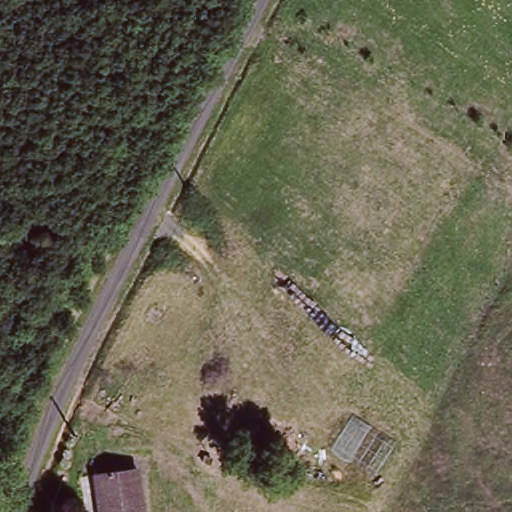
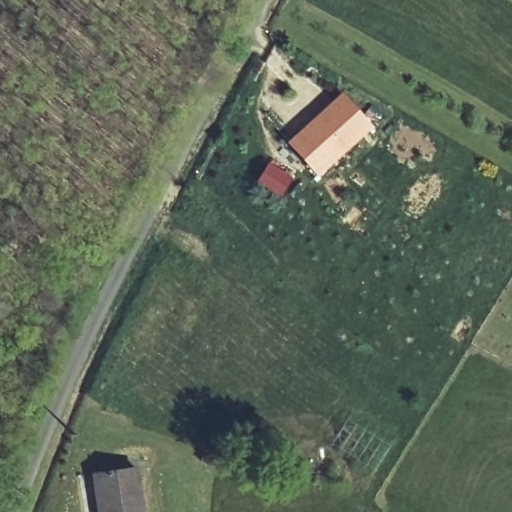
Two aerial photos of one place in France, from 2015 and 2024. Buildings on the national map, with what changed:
new [(373,128),(317,177),(285,143),(341,93),(373,128)]
unchanged [(142,512),(101,512),(94,477),(133,469),(142,512)]

